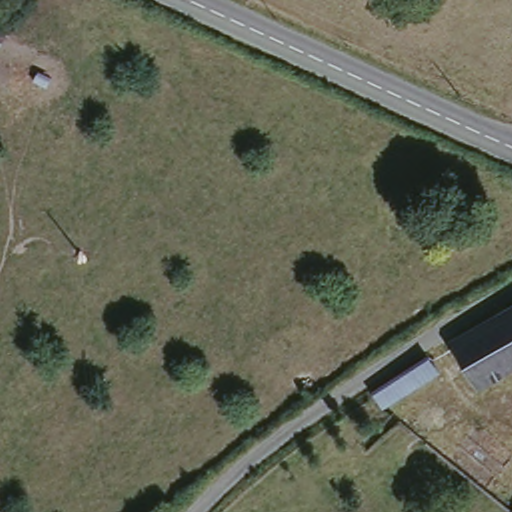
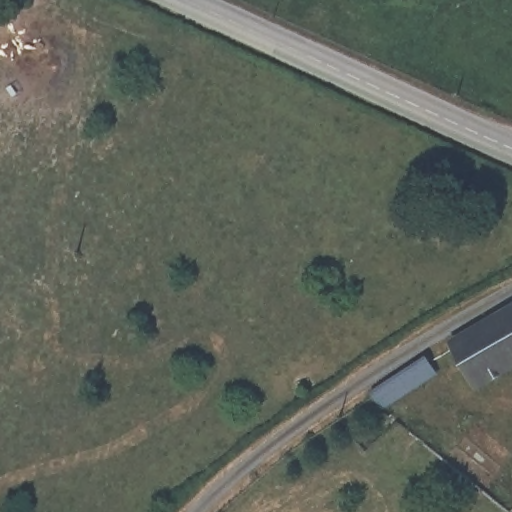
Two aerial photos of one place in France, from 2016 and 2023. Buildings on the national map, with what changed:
unchanged [(482,382),(459,339),(512,307),(512,365),(482,382)]
unchanged [(434,373),(378,408),(371,393),(372,392),(426,358),(434,373)]
unchanged [(508,507),(512,503),(512,511),(508,507)]

